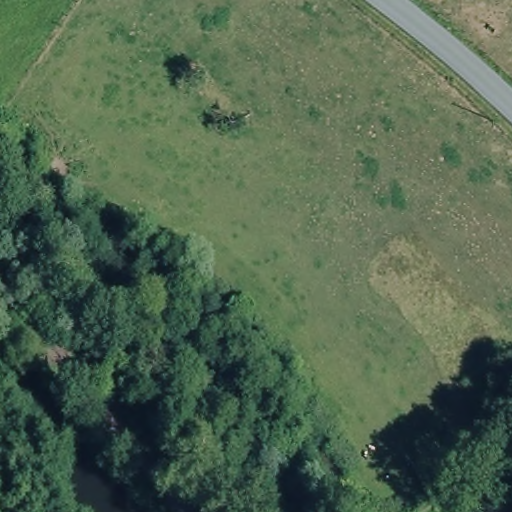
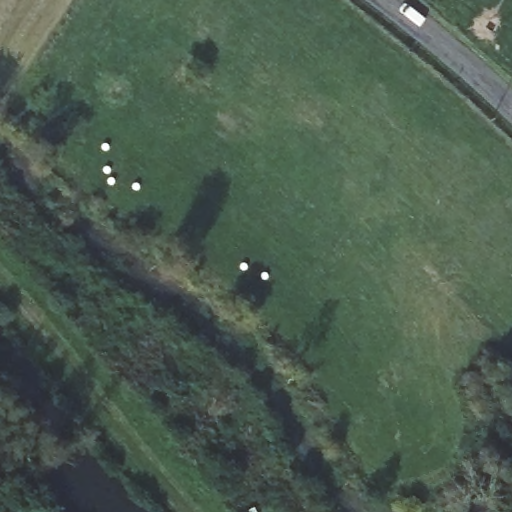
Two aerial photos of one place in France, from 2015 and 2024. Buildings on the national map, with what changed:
[]

